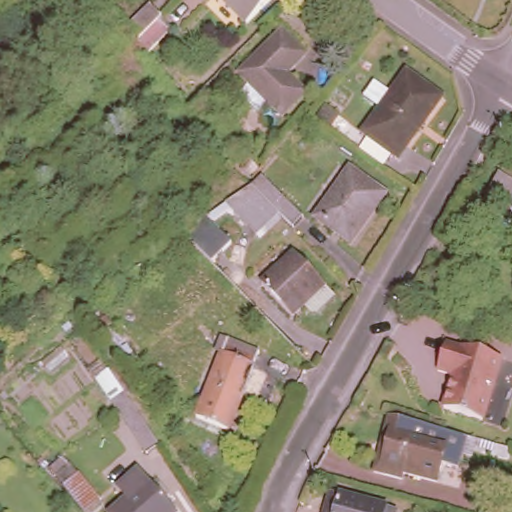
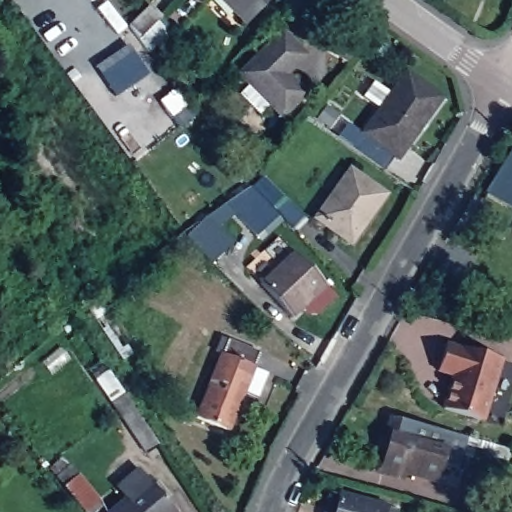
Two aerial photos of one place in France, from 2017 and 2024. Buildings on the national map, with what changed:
unchanged [(246,19),(227,0),(265,0),(246,19)]
unchanged [(169,27),(147,48),(139,36),(128,22),(150,1),(162,13),(159,16),(169,27)]
unchanged [(310,47),(291,66),(309,85),(286,107),(274,95),(264,105),(245,85),(254,75),(245,65),(286,23),(310,47)]
new [(128,45),(148,76),(115,98),(95,67),(128,45)]
unchanged [(385,103),(367,91),(378,75),(395,88),(410,66),(446,93),(403,154),(392,171),(355,144),(366,128),(385,103)]
unchanged [(500,171),(512,151),(512,204),(488,189),(498,171),(500,171)]
unchanged [(248,155),(258,165),(250,174),(240,164),(248,155)]
unchanged [(348,165),(384,190),(350,239),(315,214),(348,165)]
unchanged [(293,227),(279,212),(256,233),(226,201),(251,183),(262,173),(281,195),(303,218),(293,227)]
unchanged [(207,214),(231,238),(212,258),(188,233),(207,214)]
unchanged [(325,277),(323,279),(331,288),(318,303),(308,305),(301,298),(291,307),(260,275),(294,244),(325,277)]
unchanged [(258,349),(252,364),(267,370),(257,394),(243,389),(228,427),(196,414),(227,336),(258,349)]
unchanged [(481,416),(442,404),(452,371),(436,367),(445,339),(461,344),(461,343),(500,355),(481,416)]
unchanged [(111,398),(96,375),(108,366),(124,389),(159,441),(145,450),(111,398)]
unchanged [(457,476),(441,472),(440,478),(405,469),(403,475),(378,469),(393,413),(468,433),(457,476)]
unchanged [(55,468),(70,457),(77,466),(78,466),(98,491),(84,504),(55,468)]
unchanged [(117,484),(138,465),(176,509),(173,512),(107,512),(126,495),(117,484)]
unchanged [(335,489),(401,506),(400,512),(329,512),(330,507),(335,489)]

